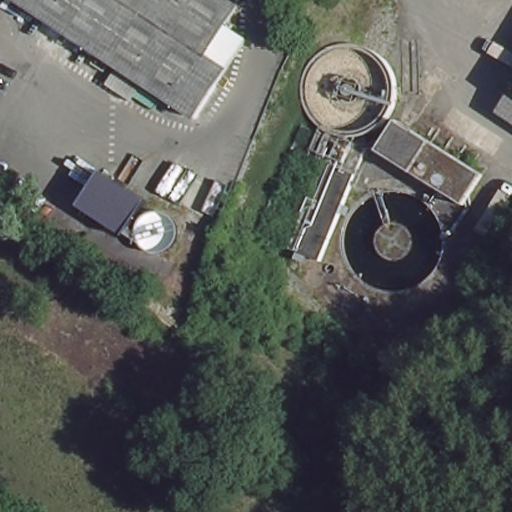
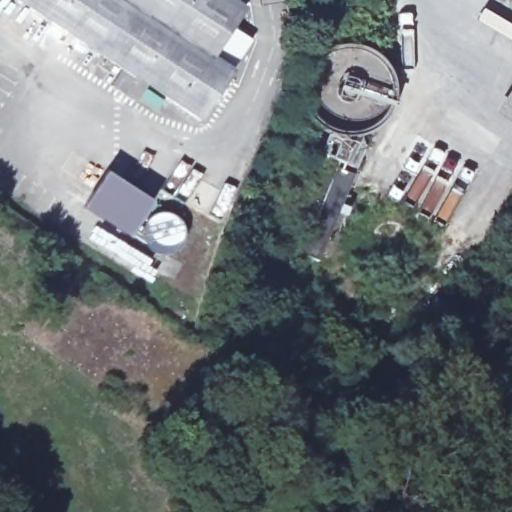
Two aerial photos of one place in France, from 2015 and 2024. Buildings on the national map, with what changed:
unchanged [(209,54),(230,68),(197,117),(67,31),(21,0),(229,0),(239,7),(209,54)]
demolished [(395,122),(480,177),(460,206),(376,152),(395,122)]
unchanged [(150,201),(127,236),(81,205),(104,170),(150,201)]
unchanged [(171,215),(172,216),(173,217),(175,217),(176,219),(177,220),(177,221),(178,222),(179,224),(180,225),(180,226),(181,227),(181,229),(181,230),(181,232),(181,233),(181,235),(181,236),(181,237),(181,239),(180,241),(179,242),(179,243),(178,244),(177,246),(176,247),(175,247),(174,249),(173,250),(172,251),(171,252),(169,252),(168,252),(167,253),(165,254),(164,254),(162,254),(161,254),(159,254),(158,254),(157,254),(155,254),(154,253),(152,252),(151,252),(150,251),(148,251),(147,250),(146,249),(145,247),(144,247),(143,245),(143,244),(142,242),(141,242),(141,240),(140,239),(140,237),(140,236),(139,235),(139,233),(139,232),(140,230),(140,229),(140,227),(141,226),(141,225),(142,223),(143,222),(143,221),(144,220),(145,219),(146,217),(148,217),(149,216),(150,215),(151,214),(153,214),(154,213),(155,212),(157,212),(158,212),(160,212),(161,212),(163,212),(164,212),(166,212),(167,213),(168,214),(170,214),(171,215)]

